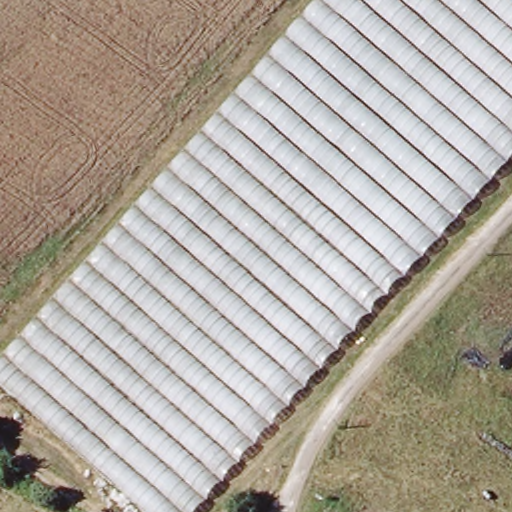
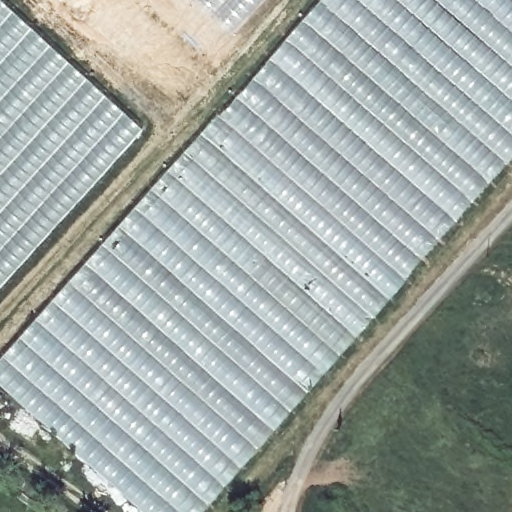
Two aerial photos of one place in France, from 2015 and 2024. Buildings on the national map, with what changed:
new [(0,0),(142,129),(0,284),(0,0)]
unchanged [(0,386),(0,363),(318,0),(512,0),(512,159),(198,512),(144,512),(0,386)]

